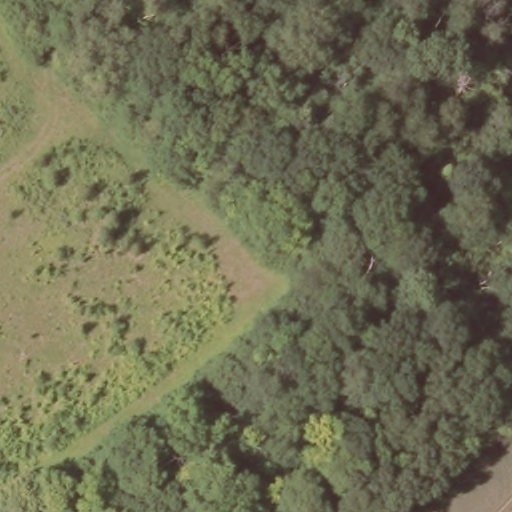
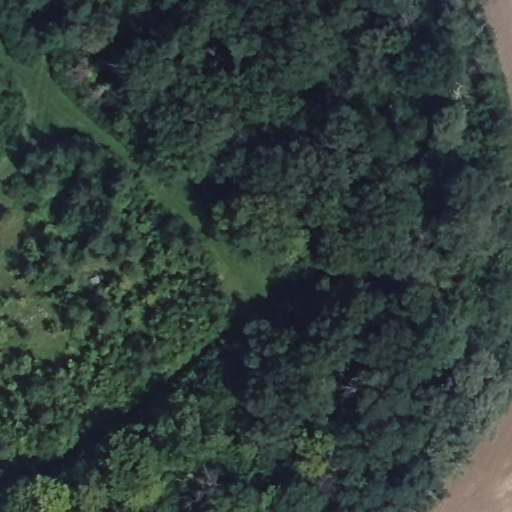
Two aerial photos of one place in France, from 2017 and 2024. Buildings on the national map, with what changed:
unchanged [(260,0),(265,5),(242,26),(226,9),(237,0),(260,0)]

